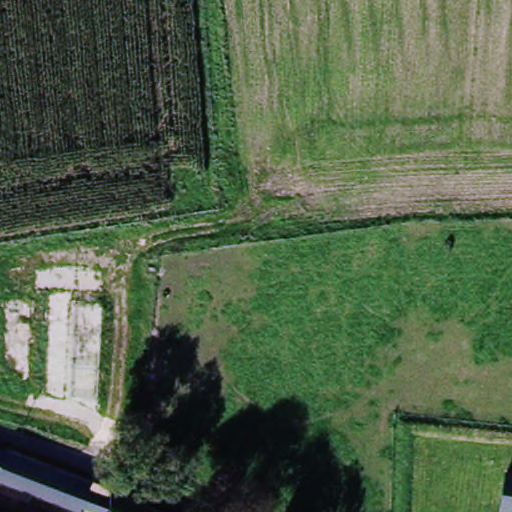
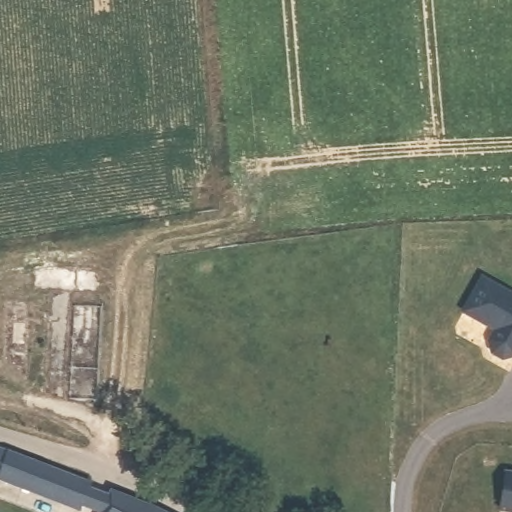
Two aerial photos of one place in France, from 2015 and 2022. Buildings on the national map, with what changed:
new [(463,313),(482,279),(512,295),(512,357),(503,360),(492,354),(489,342),(496,331),(484,324),(463,313)]
unchanged [(58,512),(49,512),(0,488),(0,448),(79,477),(58,512)]
unchanged [(511,474),(512,474),(512,512),(506,512),(511,474)]
unchanged [(116,494),(137,502),(158,512),(105,512),(116,494)]

